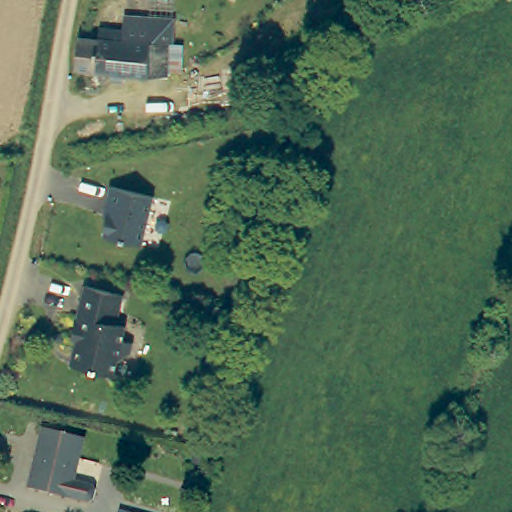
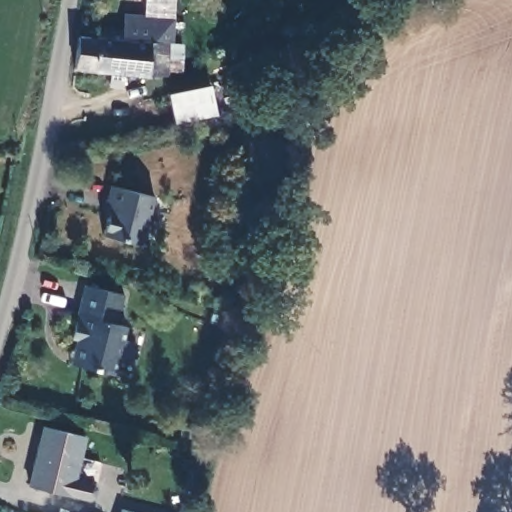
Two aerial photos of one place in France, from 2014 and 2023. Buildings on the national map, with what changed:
unchanged [(74,32),(98,37),(100,26),(123,31),(125,22),(126,17),(174,27),(173,31),(169,50),(165,50),(159,82),(68,63),(74,32)]
new [(218,115),(175,124),(169,95),(211,85),(218,115)]
unchanged [(97,244),(104,211),(99,210),(103,195),(147,204),(136,252),(97,244)]
unchanged [(69,352),(70,351),(70,345),(66,341),(80,287),(121,295),(115,325),(121,328),(120,340),(129,342),(127,352),(119,357),(112,365),(109,375),(75,367),(67,366),(69,352)]
unchanged [(72,482),(91,486),(94,490),(92,500),(88,503),(68,498),(68,499),(26,489),(39,427),(81,436),(72,482)]

